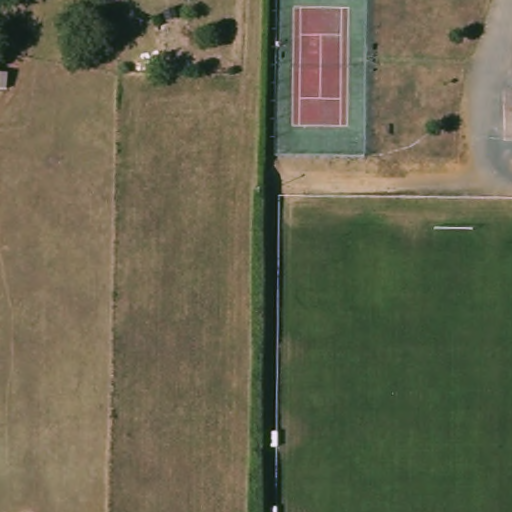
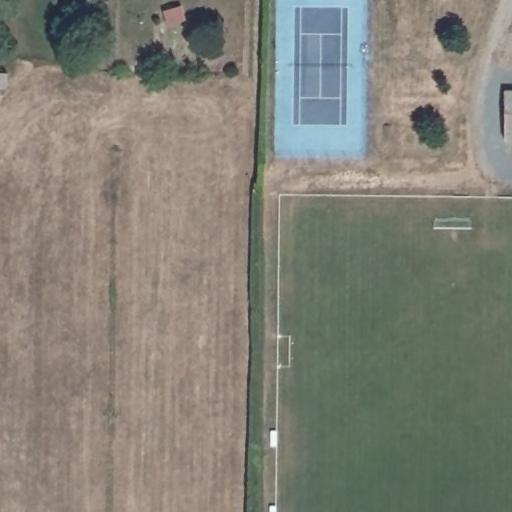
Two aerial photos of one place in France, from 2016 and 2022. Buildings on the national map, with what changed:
unchanged [(0,90),(0,74),(6,75),(5,90),(0,90)]
unchanged [(507,144),(507,124),(508,98),(512,98),(512,144),(507,144)]

